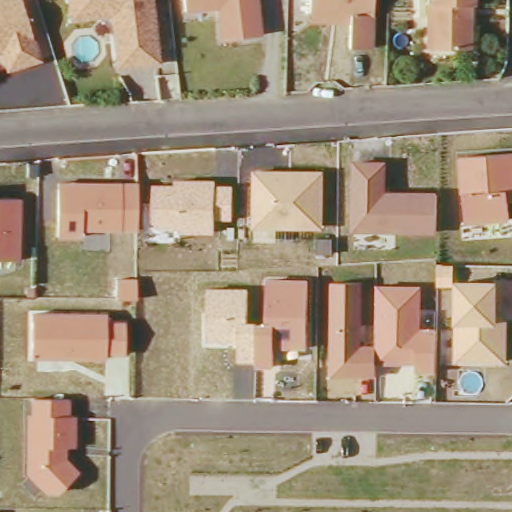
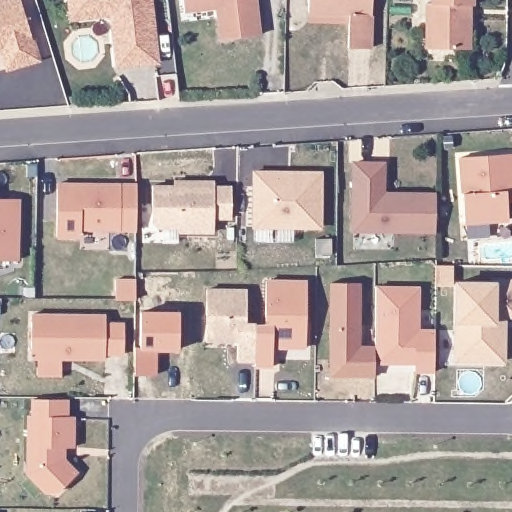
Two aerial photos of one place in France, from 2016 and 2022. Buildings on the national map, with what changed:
unchanged [(22,0),(41,63),(10,72),(3,48),(0,49),(0,7),(22,0)]
unchanged [(160,62),(120,66),(114,15),(74,19),(72,7),(71,0),(153,0),(160,62)]
unchanged [(258,2),(262,39),(224,43),(220,12),(187,15),(185,0),(258,0),(258,2)]
unchanged [(311,0),(373,0),(372,48),(349,47),(349,13),(310,11),(311,0)]
unchanged [(457,47),(432,47),(428,46),(430,2),(432,2),(433,0),(474,0),(474,4),(471,4),(470,48),(457,47)]
unchanged [(460,161),(512,155),(512,204),(507,205),(509,222),(467,225),(464,197),(460,161)]
unchanged [(436,193),(436,235),(352,232),(352,162),(387,162),(386,192),(436,193)]
unchanged [(255,174),(323,175),(323,232),(255,231),(255,174)]
unchanged [(152,225),(154,187),(177,188),(175,184),(216,184),(217,190),(232,190),(234,222),(215,221),(215,237),(179,237),(179,232),(161,233),(152,225)]
unchanged [(59,186),(137,185),(137,235),(82,235),(82,242),(57,241),(59,186)]
unchanged [(20,202),(19,263),(0,264),(0,202),(20,202)]
unchanged [(275,351),(274,368),(255,367),(257,327),(266,325),(267,279),(309,280),(307,351),(275,351)]
unchanged [(457,285),(495,285),(494,282),(512,282),(512,322),(507,322),(507,365),(455,366),(456,327),(457,285)]
unchanged [(417,373),(417,365),(375,363),(375,378),(330,378),(329,283),(361,283),(362,347),(375,345),(377,287),(420,287),(420,330),(435,330),(435,373),(417,373)]
unchanged [(207,292),(247,293),(247,327),(257,327),(255,367),(237,367),(237,346),(207,346),(207,292)]
new [(135,374),(135,348),(142,348),(142,312),(180,313),(180,350),(157,349),(156,376),(135,375),(135,374)]
unchanged [(32,316),(107,318),(107,364),(31,364),(32,316)]
unchanged [(46,496),(27,477),(27,417),(30,417),(32,402),(69,402),(69,420),(74,420),(74,451),(67,450),(67,462),(80,476),(58,498),(46,496)]

